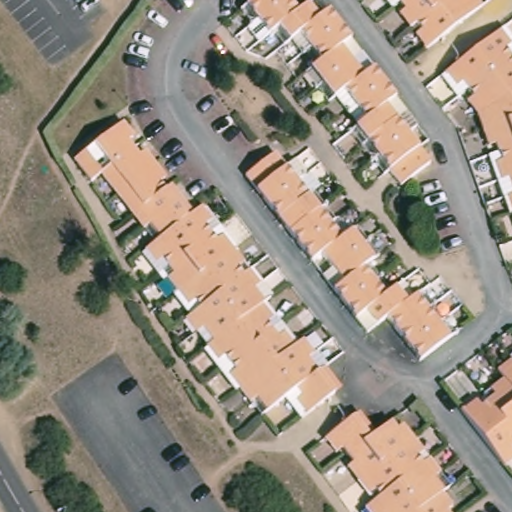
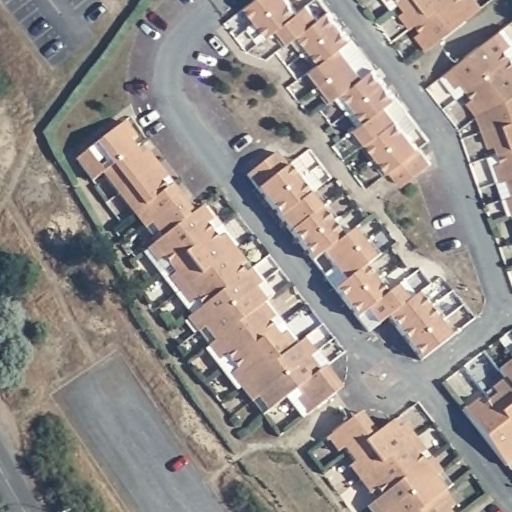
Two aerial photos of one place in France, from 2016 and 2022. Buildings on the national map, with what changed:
unchanged [(260,42),(237,14),(256,0),(286,0),(296,12),(305,6),(317,24),(284,46),(283,48),(277,51),(267,36),(260,42)]
unchanged [(381,0),(393,0),(385,6),(381,0)]
unchanged [(465,0),(474,0),(483,11),(428,54),(417,39),(423,32),(419,26),(411,33),(402,21),(411,13),(399,0),(464,0),(465,0)]
unchanged [(403,194),(395,183),(388,175),(381,180),(346,138),(355,130),(330,100),(321,106),(298,78),(303,73),(284,46),(317,24),(329,17),(351,46),(342,51),(363,80),(372,74),(395,101),(387,108),(428,160),(436,169),(403,194)]
unchanged [(495,112),(485,119),(477,124),(472,116),(463,108),(470,100),(460,84),(452,90),(441,79),(500,31),(512,47),(512,57),(506,63),(509,66),(512,64),(512,100),(495,112)]
unchanged [(511,215),(495,172),(503,166),(497,149),(487,151),(483,139),(478,127),(477,124),(485,119),(495,112),(512,100),(512,215),(511,215)]
unchanged [(95,187),(76,160),(96,144),(118,128),(139,155),(145,151),(167,181),(154,190),(136,167),(142,162),(140,159),(109,179),(95,187)]
unchanged [(172,286),(163,292),(122,235),(132,227),(110,198),(119,192),(109,179),(140,159),(142,162),(136,167),(162,201),(178,188),(222,243),(215,249),(227,263),(235,258),(256,285),(250,290),(254,296),(205,330),(172,286)]
unchanged [(239,184),(270,163),(321,226),(290,248),(239,184)]
unchanged [(337,245),(357,230),(378,259),(371,266),(392,293),(402,287),(412,301),(420,295),(452,342),(417,368),(382,325),(372,332),(362,317),(351,324),(331,298),(340,290),(317,261),(306,268),(290,248),(321,226),(337,245)]
unchanged [(254,296),(291,347),(302,339),(341,391),(302,419),(285,399),(263,414),(254,400),(250,403),(205,330),(254,296)]
unchanged [(510,458),(512,460),(512,466),(501,476),(459,420),(471,411),(475,417),(490,405),(485,399),(498,389),(492,382),(507,371),(505,368),(512,363),(512,456),(510,458)]
unchanged [(372,505),(377,501),(368,490),(361,497),(340,469),(348,464),(337,449),(328,457),(318,440),(325,435),(348,421),(362,439),(385,424),(390,431),(397,426),(417,452),(410,457),(417,467),(424,461),(446,489),(437,495),(451,512),(362,512),(372,505)]

